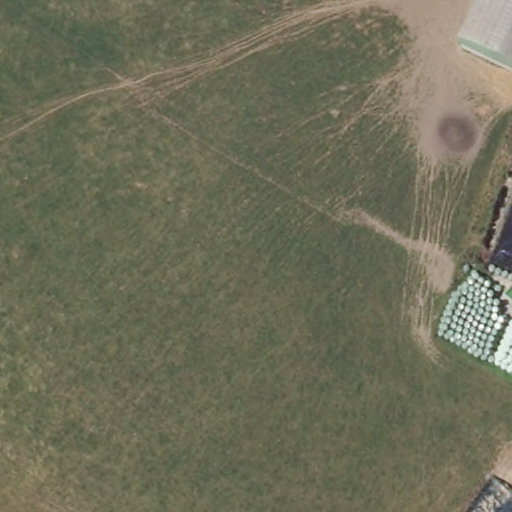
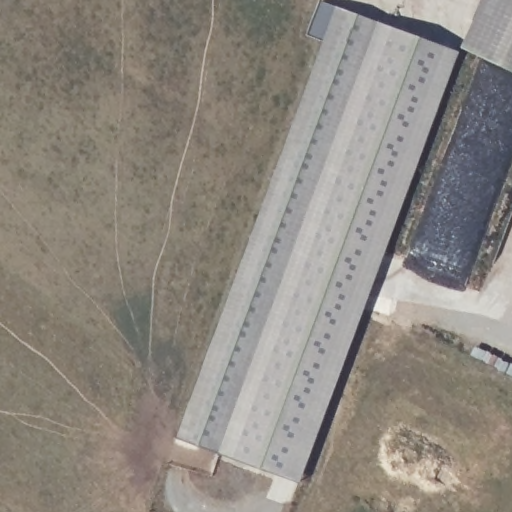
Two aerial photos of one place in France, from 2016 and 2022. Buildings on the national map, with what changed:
unchanged [(476,0),(512,0),(512,71),(455,44),(476,0)]
new [(310,34),(322,1),(336,6),(458,51),(299,482),(177,437),(324,39),(310,34)]

